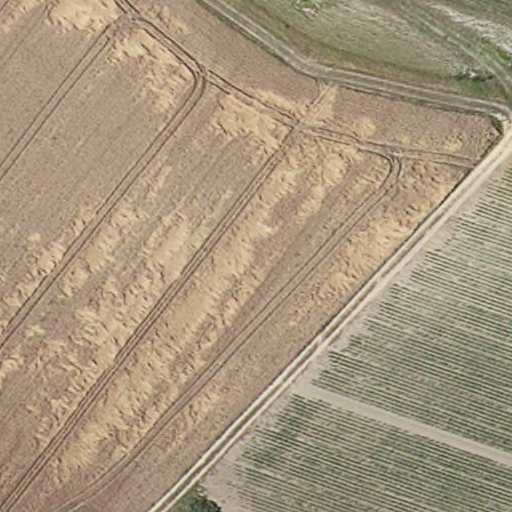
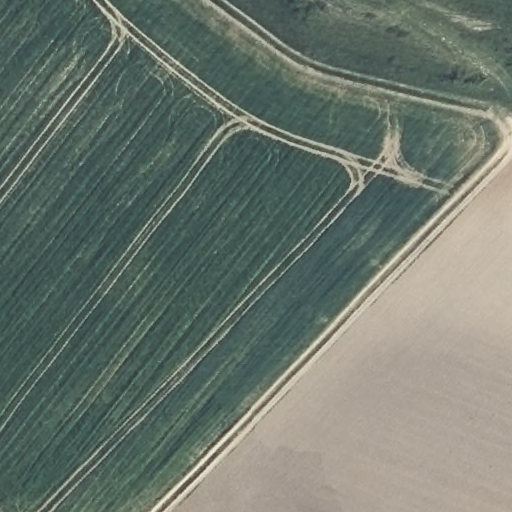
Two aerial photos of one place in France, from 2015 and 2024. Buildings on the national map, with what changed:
[]

